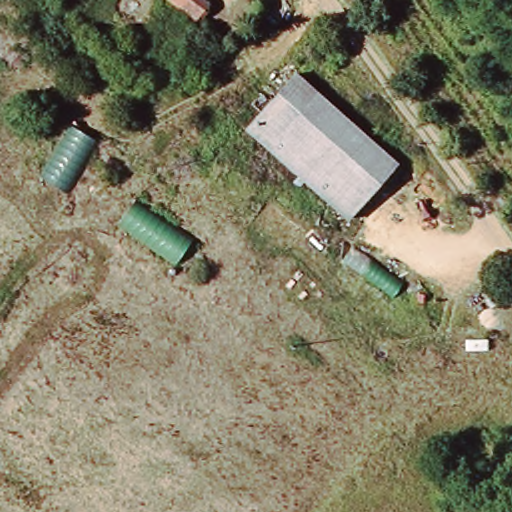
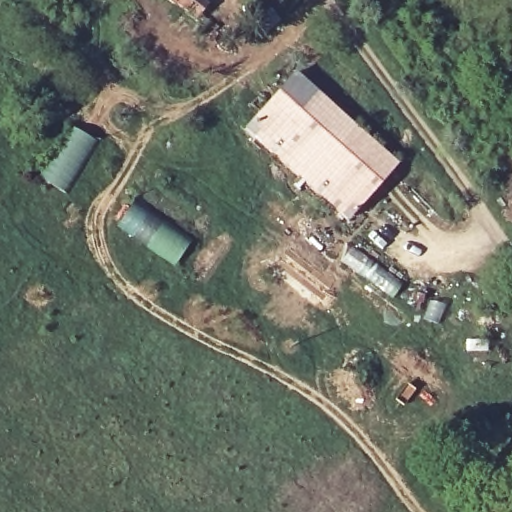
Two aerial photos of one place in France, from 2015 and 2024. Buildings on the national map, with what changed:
unchanged [(210,1),(194,20),(169,0),(209,0),(210,1)]
unchanged [(316,100),(326,91),(405,166),(356,220),(276,148),(245,128),(259,104),(285,76),(316,100)]
unchanged [(73,123),(100,139),(70,190),(42,175),(73,123)]
unchanged [(133,198),(195,240),(177,268),(115,225),(133,198)]

